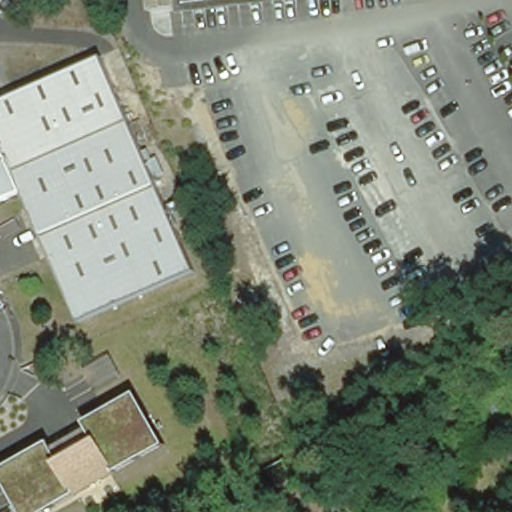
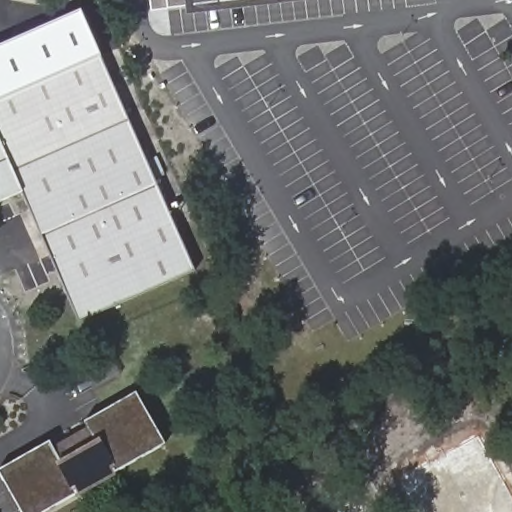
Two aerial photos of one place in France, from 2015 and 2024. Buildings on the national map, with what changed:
unchanged [(156,0),(319,0),(158,20),(156,0)]
new [(98,51),(0,95),(0,44),(80,10),(98,51)]
unchanged [(197,264),(79,318),(21,186),(0,196),(0,95),(103,49),(197,264)]
unchanged [(55,447),(87,431),(79,423),(134,392),(167,446),(47,512),(18,512),(0,482),(0,469),(50,441),(55,447)]

